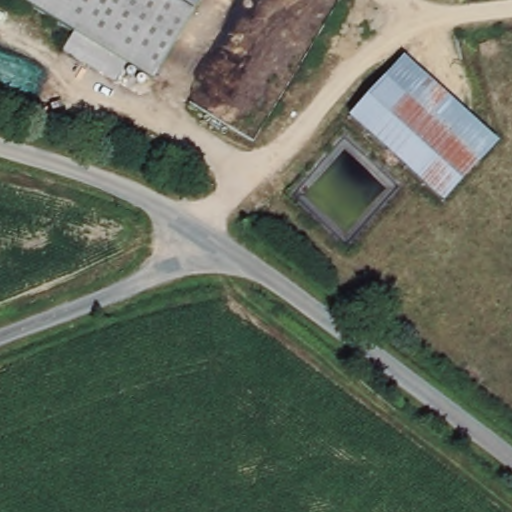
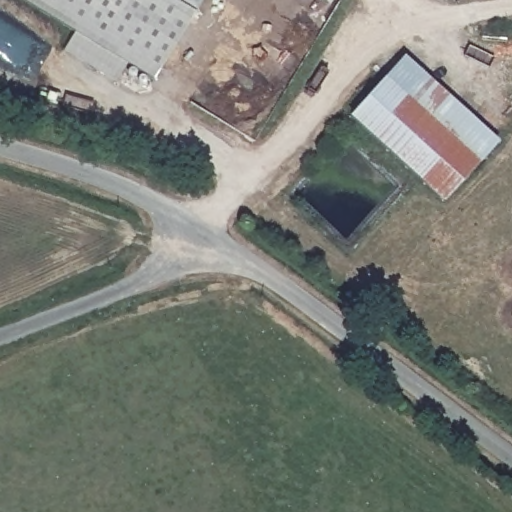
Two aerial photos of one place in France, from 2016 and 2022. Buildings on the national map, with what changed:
unchanged [(156,81),(21,0),(205,0),(156,81)]
unchanged [(347,116),(383,77),(405,55),(497,141),(478,162),(444,203),(347,116)]

